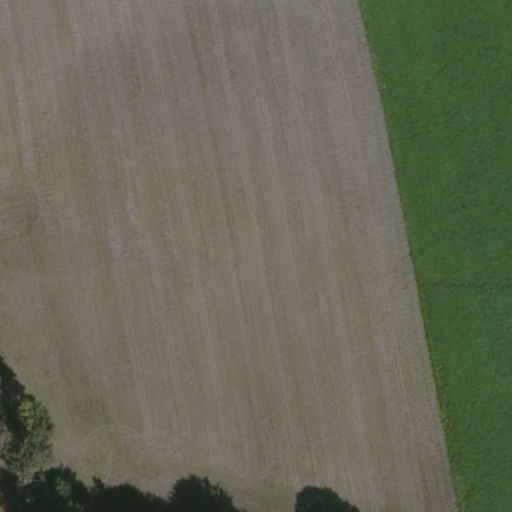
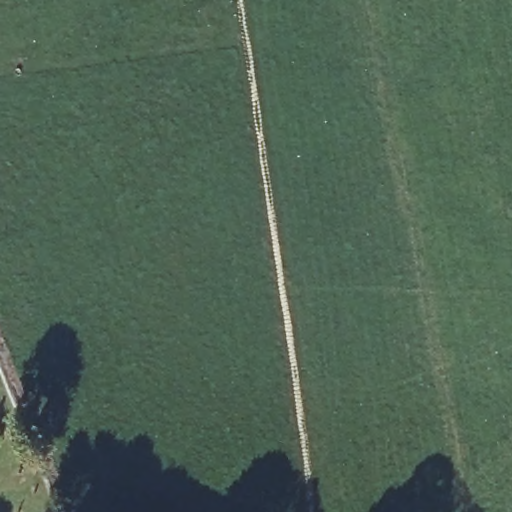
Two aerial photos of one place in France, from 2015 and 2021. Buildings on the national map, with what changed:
[]

